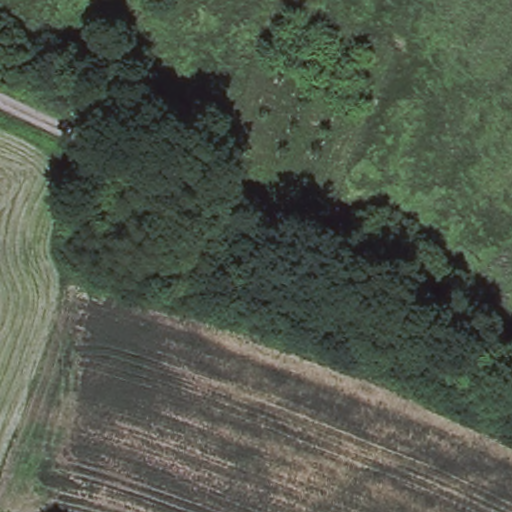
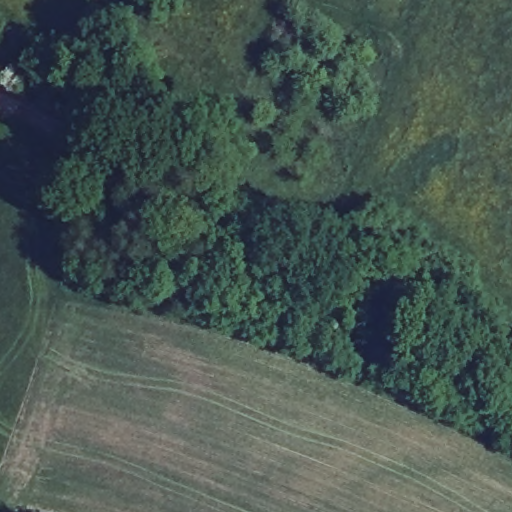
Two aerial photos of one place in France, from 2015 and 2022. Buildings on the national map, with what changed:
[]

